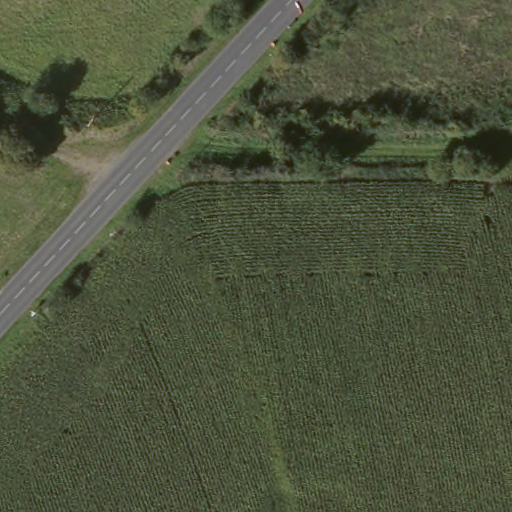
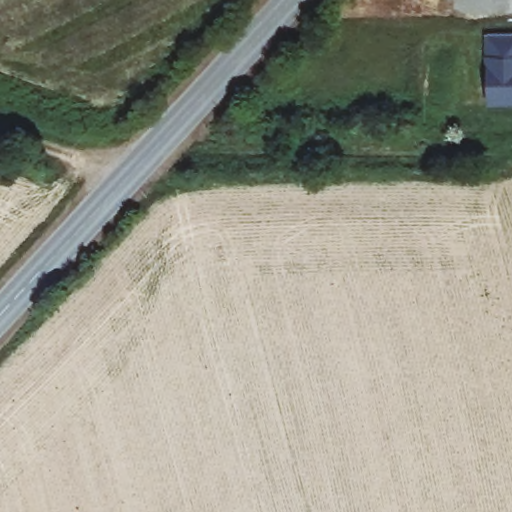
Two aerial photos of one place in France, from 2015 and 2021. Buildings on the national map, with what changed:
new [(512,32),(512,54),(511,61),(512,61),(512,102),(477,100),(480,31),(512,32)]

